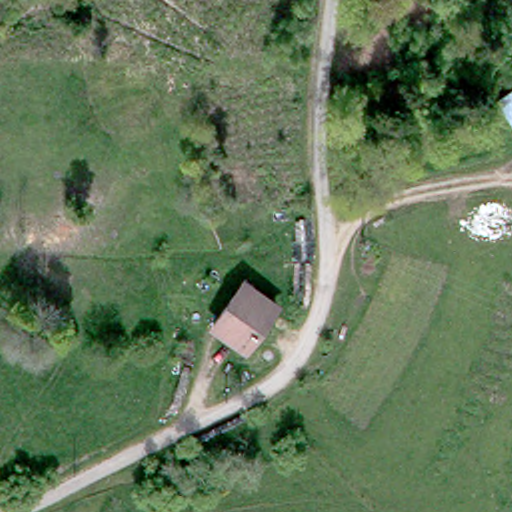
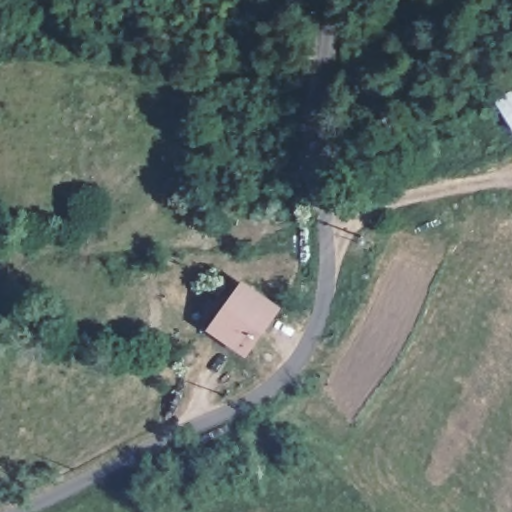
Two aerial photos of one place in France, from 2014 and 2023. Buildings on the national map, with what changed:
unchanged [(512,87),(512,124),(511,125),(496,95),(512,87)]
unchanged [(275,303),(246,346),(215,325),(245,283),(275,303)]

